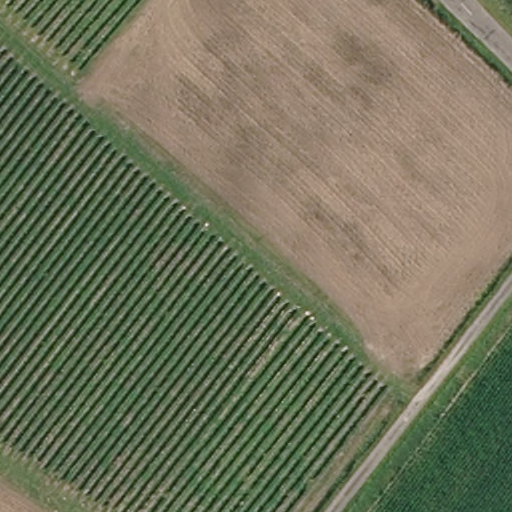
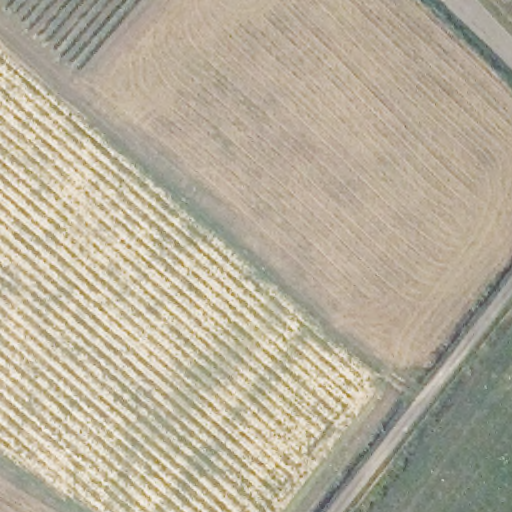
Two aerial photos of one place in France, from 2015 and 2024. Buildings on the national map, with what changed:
[]

